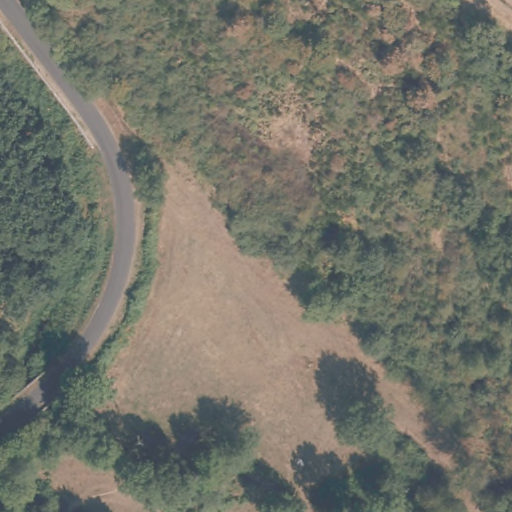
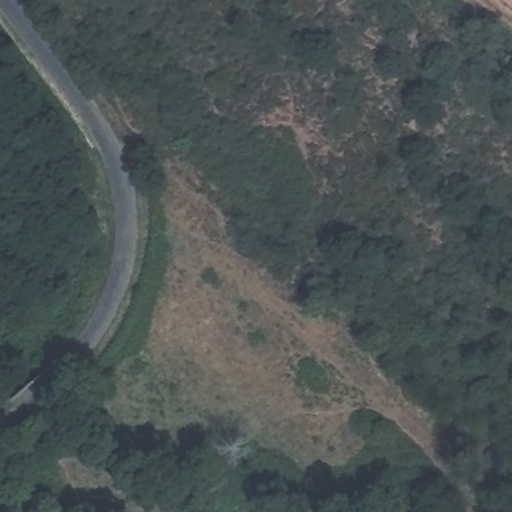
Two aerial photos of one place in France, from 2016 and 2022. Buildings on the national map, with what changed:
[]

